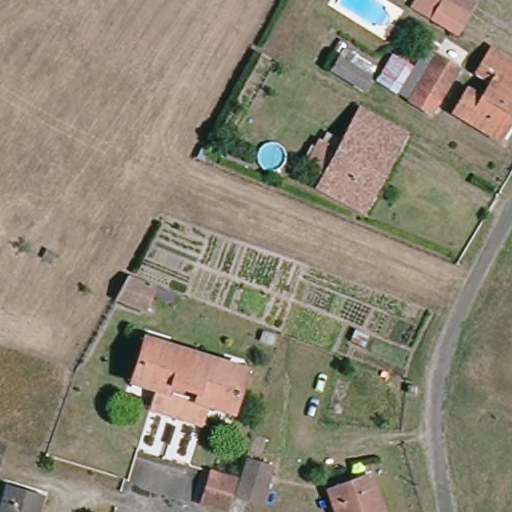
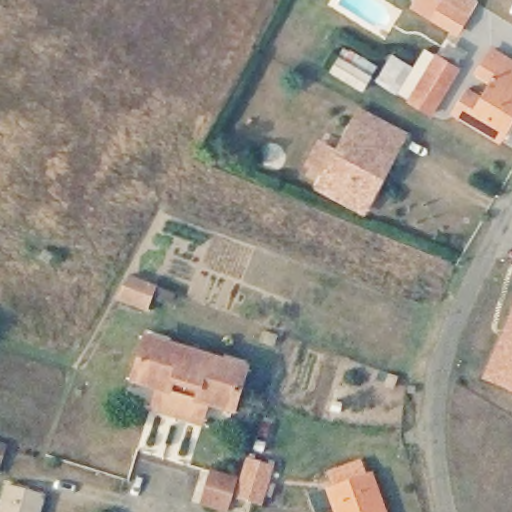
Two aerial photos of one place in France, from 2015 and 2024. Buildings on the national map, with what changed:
unchanged [(416,0),(439,0),(442,2),(443,0),(470,0),(474,3),(465,16),(455,33),(412,6),(416,0)]
unchanged [(408,100),(396,93),(400,85),(380,74),(391,54),(411,66),(422,49),(434,56),(408,100)]
unchanged [(467,90),(482,99),(490,85),(475,75),(477,73),(490,50),(512,64),(512,117),(498,139),(473,124),(454,113),(457,108),(467,90)]
unchanged [(430,114),(408,100),(434,56),(457,69),(430,114)]
unchanged [(368,77),(360,89),(330,71),(337,58),(368,77)]
unchanged [(316,188),(323,175),(305,165),(318,143),(335,153),(352,120),(359,109),(404,134),(398,145),(391,159),(370,197),(362,213),(316,188)]
unchanged [(142,310),(114,299),(127,275),(151,284),(142,310)]
new [(512,305),(512,388),(482,376),(512,305)]
unchanged [(191,422),(197,403),(164,393),(158,412),(148,409),(154,389),(131,383),(143,346),(145,339),(167,347),(220,363),(242,370),(240,377),(229,413),(207,406),(201,426),(191,422)]
unchanged [(0,458),(0,446),(3,447),(0,458)]
unchanged [(260,506),(234,498),(246,459),(272,467),(260,506)]
unchanged [(226,512),(200,504),(210,472),(235,480),(226,512)]
unchanged [(377,512),(331,512),(323,491),(364,477),(377,512)]
unchanged [(39,512),(0,512),(0,499),(4,485),(43,497),(39,512)]

